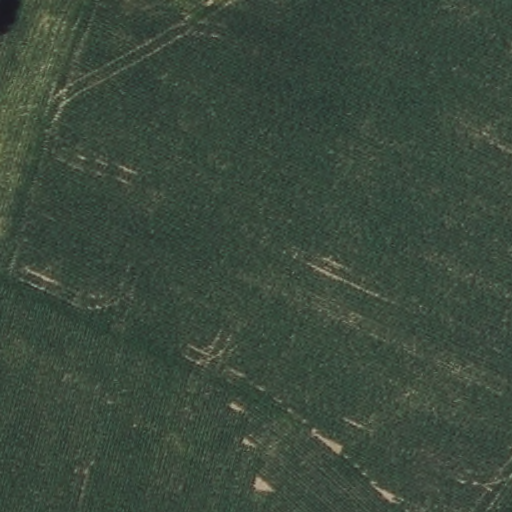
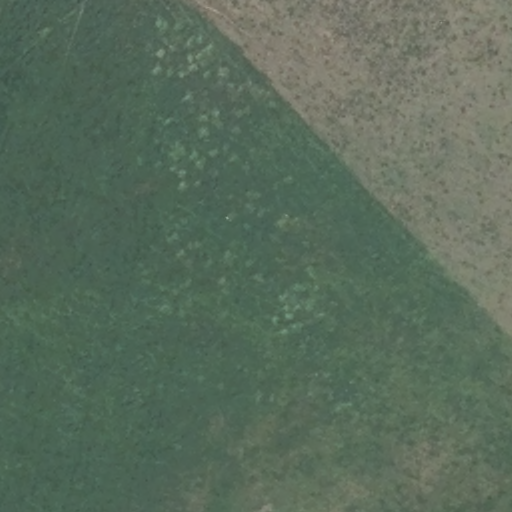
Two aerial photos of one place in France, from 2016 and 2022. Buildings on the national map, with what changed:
[]

